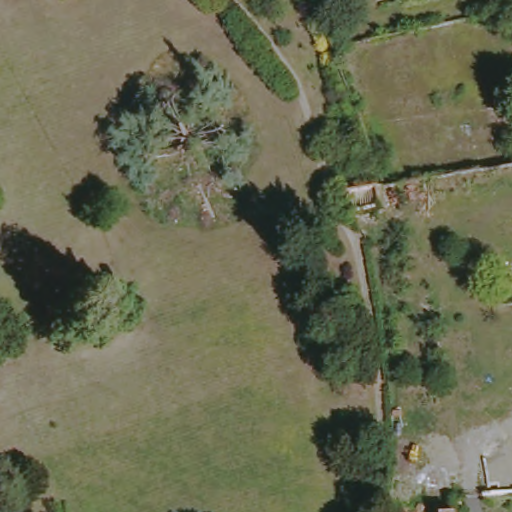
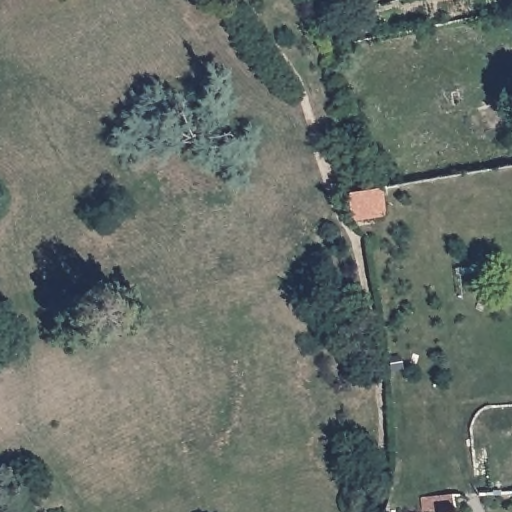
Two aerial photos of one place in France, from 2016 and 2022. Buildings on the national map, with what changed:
unchanged [(385,210),(367,213),(352,216),(349,193),(382,188),(385,210)]

